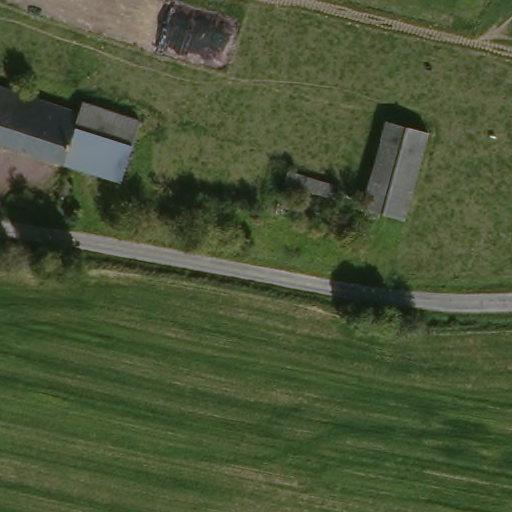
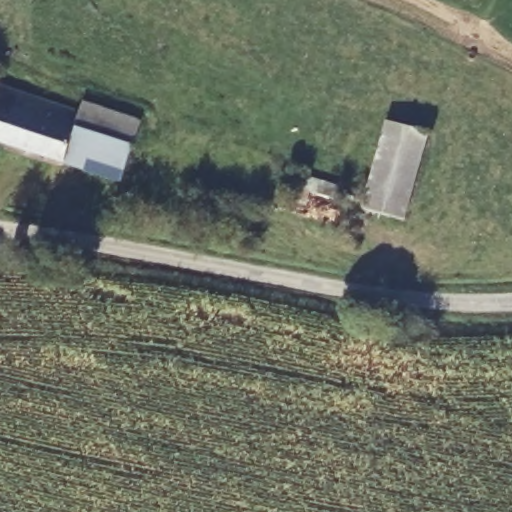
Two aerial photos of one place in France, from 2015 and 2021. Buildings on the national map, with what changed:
unchanged [(0,94),(32,105),(17,157),(0,151),(0,94)]
unchanged [(75,118),(79,110),(134,126),(115,190),(17,157),(32,105),(75,118)]
unchanged [(423,135),(398,222),(359,210),(384,123),(423,135)]
unchanged [(341,185),(337,199),(287,185),(291,170),(341,185)]

